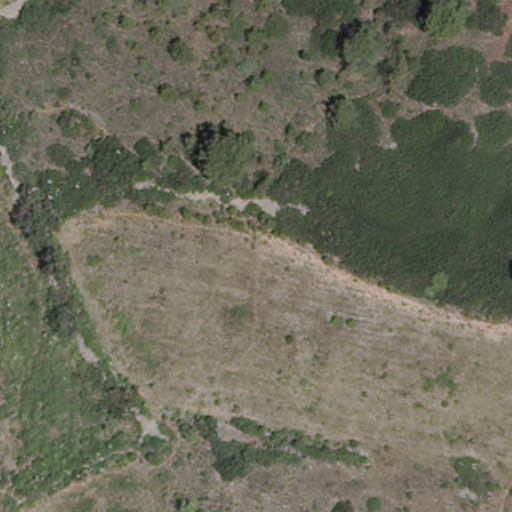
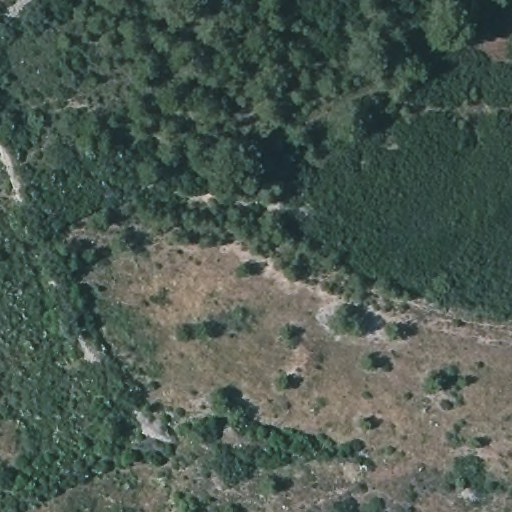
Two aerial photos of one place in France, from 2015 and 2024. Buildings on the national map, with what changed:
[]

